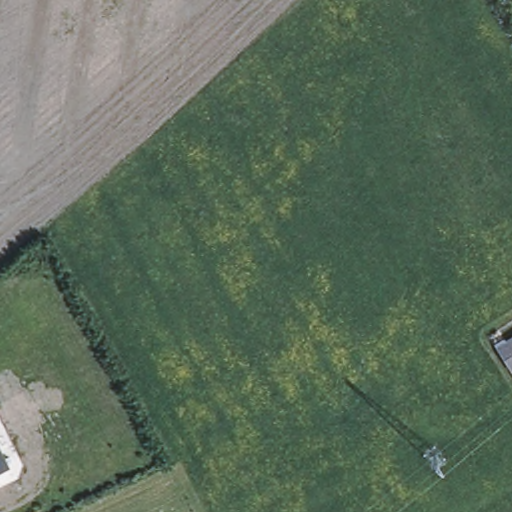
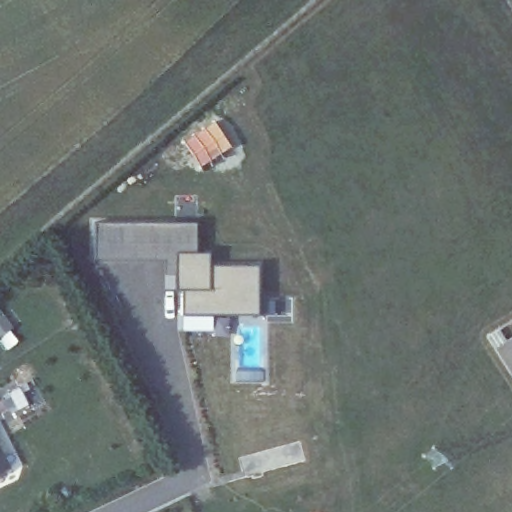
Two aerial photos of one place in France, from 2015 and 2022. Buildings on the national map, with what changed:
new [(194,224),(194,254),(210,254),(211,273),(271,275),(271,324),(182,323),(182,295),(170,295),(170,275),(90,275),(91,227),(194,224)]
unchanged [(512,337),(512,355),(504,342),(512,337)]
unchanged [(0,474),(0,440),(13,468),(0,474)]

